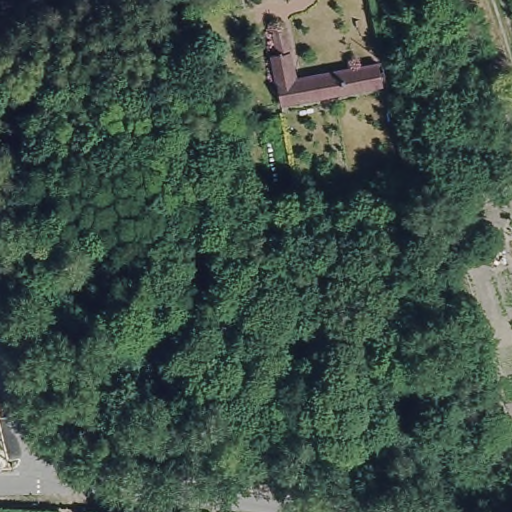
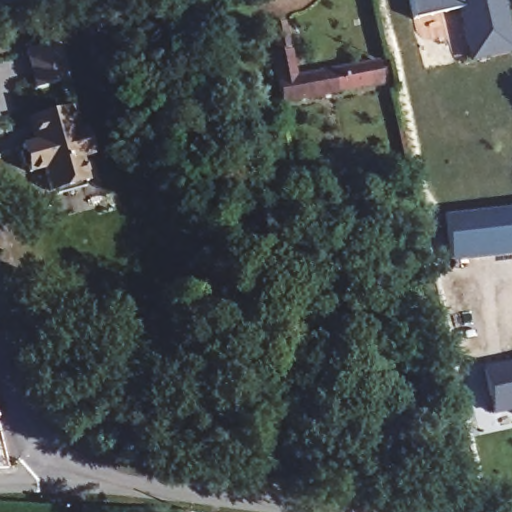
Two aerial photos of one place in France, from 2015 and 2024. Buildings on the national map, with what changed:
new [(512,36),(512,53),(470,63),(457,10),(414,20),(409,0),(504,0),(512,36)]
unchanged [(141,49),(137,30),(172,21),(177,44),(141,49)]
unchanged [(347,97),(342,94),(282,107),(271,53),(277,52),(272,29),(286,26),(297,78),(376,62),(381,86),(357,91),(357,95),(347,97)]
new [(57,44),(67,80),(36,89),(27,52),(57,44)]
new [(22,152),(21,146),(36,142),(30,119),(67,109),(73,132),(84,129),(91,156),(81,159),(87,182),(82,184),(84,189),(55,196),(54,191),(49,192),(43,169),(28,173),(27,167),(22,168),(17,153),(22,152)]
new [(449,256),(445,211),(512,204),(512,249),(449,256)]
new [(491,410),(482,366),(512,359),(512,405),(491,410)]
unchanged [(2,427),(0,427),(0,421),(1,425),(2,427)]

